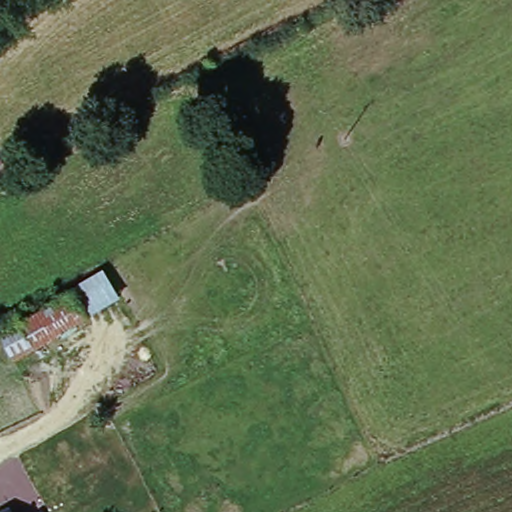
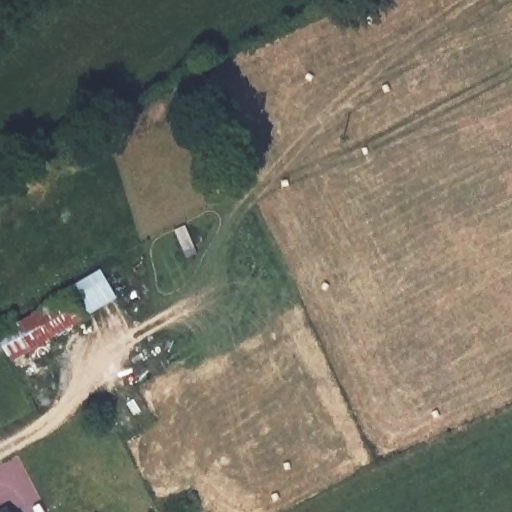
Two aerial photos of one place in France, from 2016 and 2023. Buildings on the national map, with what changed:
unchanged [(24,322),(26,326),(97,292),(102,306),(94,310),(98,321),(9,363),(0,342),(0,335),(24,322)]

